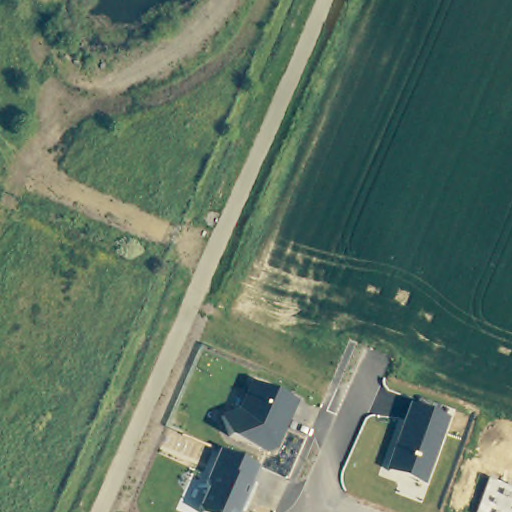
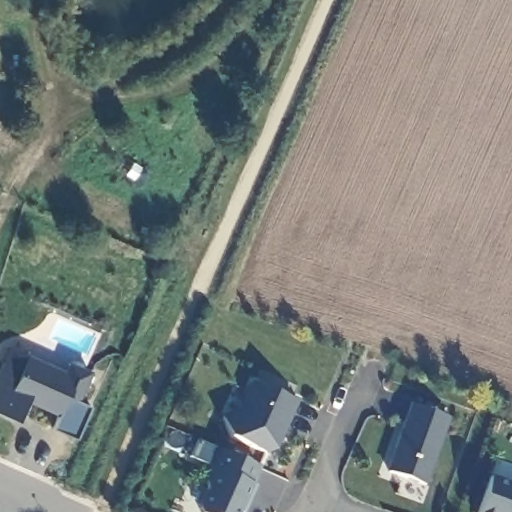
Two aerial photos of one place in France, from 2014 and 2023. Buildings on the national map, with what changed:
new [(78,400),(90,406),(74,436),(51,427),(56,415),(27,403),(17,420),(0,413),(0,363),(9,343),(61,369),(66,359),(91,372),(78,400)]
unchanged [(240,409),(254,382),(299,403),(278,449),(267,454),(234,439),(229,438),(222,415),(240,409)]
unchanged [(409,404),(448,419),(425,485),(385,471),(409,404)]
unchanged [(207,489),(205,484),(219,451),(257,466),(250,483),(252,484),(240,512),(200,512),(199,508),(207,489)]
unchanged [(512,486),(512,512),(477,512),(489,479),(512,486)]

